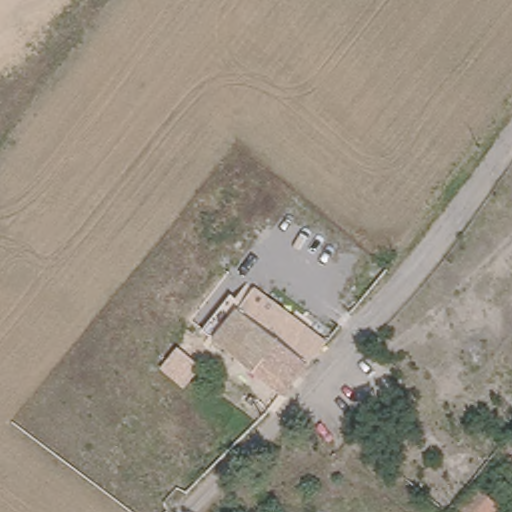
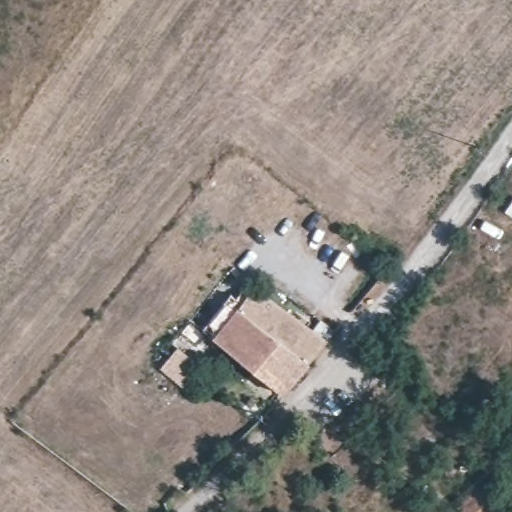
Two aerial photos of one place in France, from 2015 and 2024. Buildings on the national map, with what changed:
unchanged [(281,398),(213,344),(241,310),(253,294),(325,347),(281,398)]
unchanged [(256,401),(251,407),(245,402),(250,396),(256,401)]
unchanged [(501,503),(493,512),(468,512),(459,504),(477,483),(501,503)]

